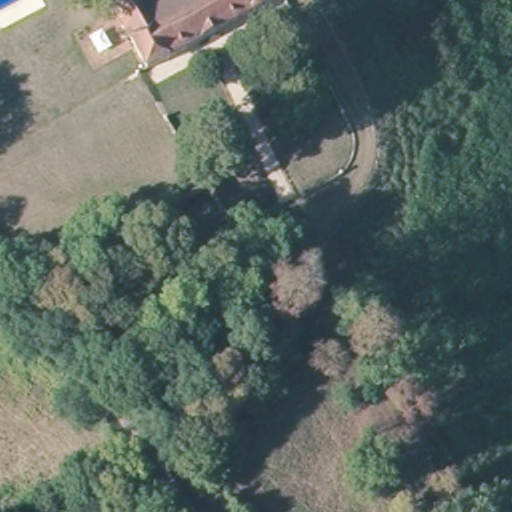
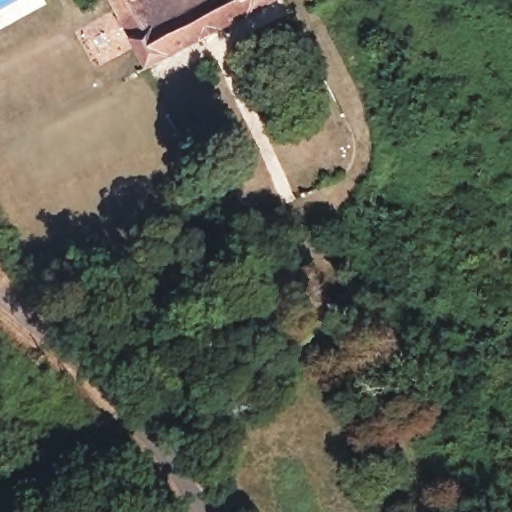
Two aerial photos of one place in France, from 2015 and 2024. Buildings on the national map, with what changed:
unchanged [(145,49),(119,0),(283,0),(154,65),(145,49)]
unchanged [(242,224),(214,239),(201,217),(224,199),(242,224)]

